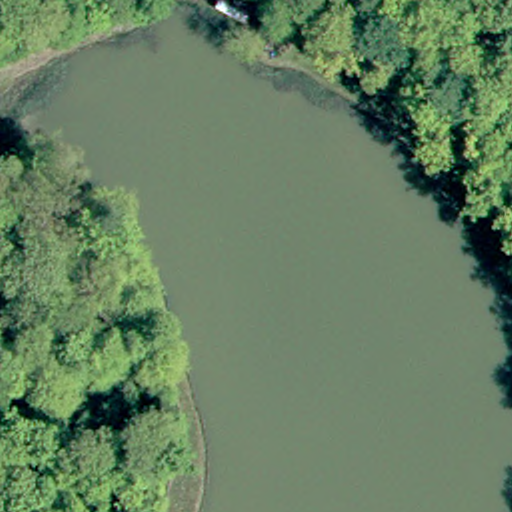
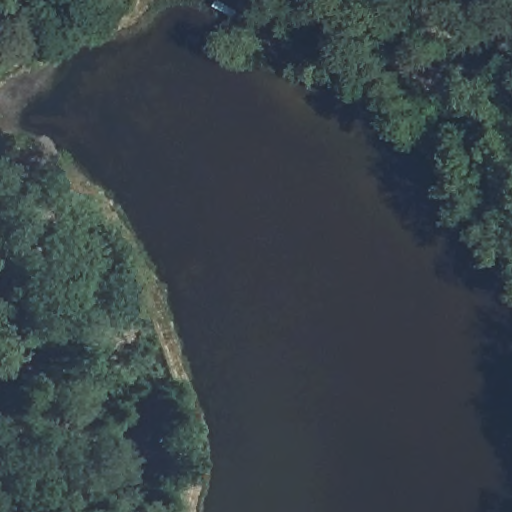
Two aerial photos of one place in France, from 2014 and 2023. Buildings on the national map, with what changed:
unchanged [(261,2),(257,10),(240,0),(263,0),(261,2)]

